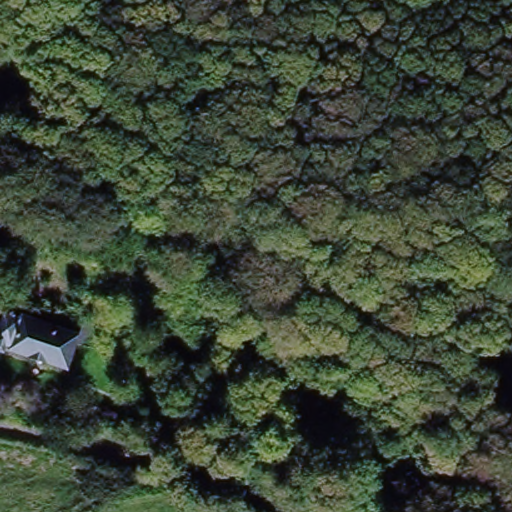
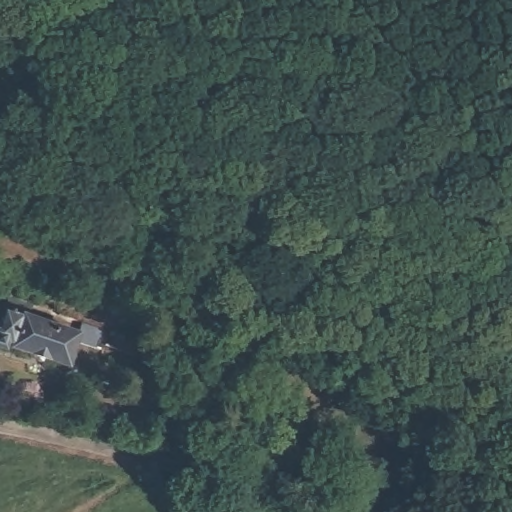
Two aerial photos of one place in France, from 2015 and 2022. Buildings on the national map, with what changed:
unchanged [(10,351),(9,354),(0,352),(0,331),(6,314),(10,304),(53,322),(63,325),(60,335),(79,342),(67,373),(10,351)]

